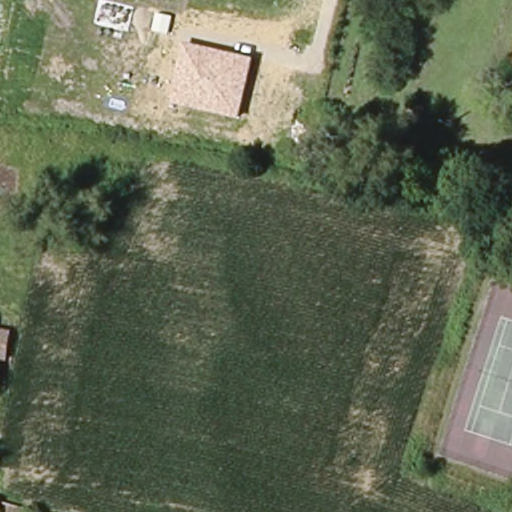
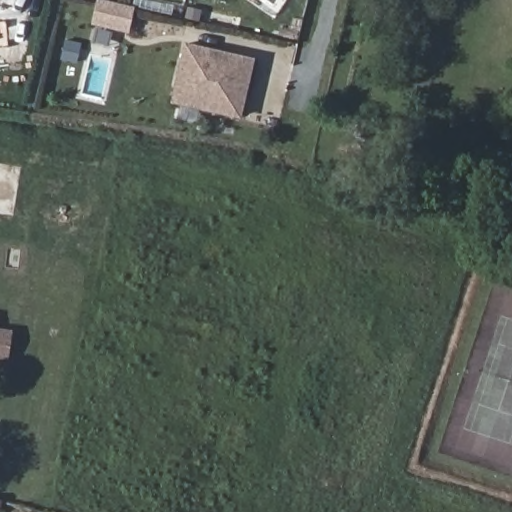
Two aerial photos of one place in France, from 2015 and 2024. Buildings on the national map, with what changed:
new [(110,31),(107,45),(91,41),(95,25),(90,25),(96,0),(107,0),(132,6),(126,32),(110,31)]
unchanged [(240,119),(170,103),(183,43),(255,58),(240,119)]
unchanged [(8,327),(3,354),(0,353),(0,325),(8,327)]
unchanged [(1,508),(0,508),(0,500),(2,501),(1,508)]

